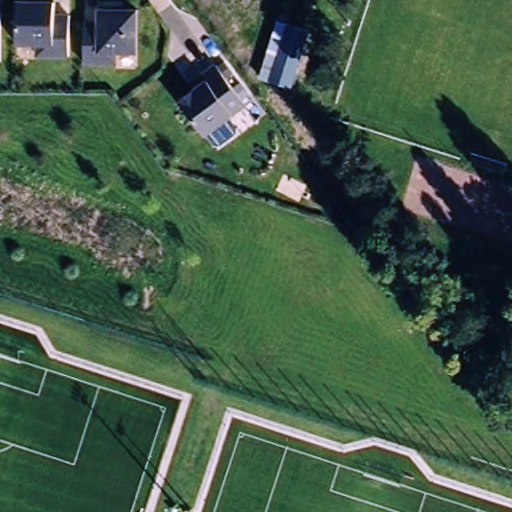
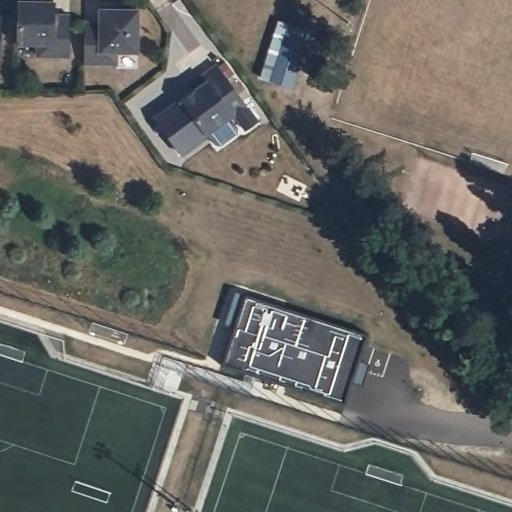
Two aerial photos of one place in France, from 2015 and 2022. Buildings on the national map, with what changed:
unchanged [(37,46),(19,46),(20,2),(57,3),(56,14),(72,14),(71,57),(37,58),(37,46)]
unchanged [(86,22),(99,22),(99,9),(140,9),(139,53),(119,54),(119,64),(85,64),(86,22)]
unchanged [(0,63),(0,10),(2,10),(2,63),(0,63)]
unchanged [(308,33),(291,89),(261,80),(279,24),(308,33)]
unchanged [(248,106),(230,120),(239,134),(222,146),(212,132),(206,137),(179,100),(197,87),(193,82),(218,64),(248,106)]
new [(345,404),(222,363),(245,292),(369,333),(345,404)]

